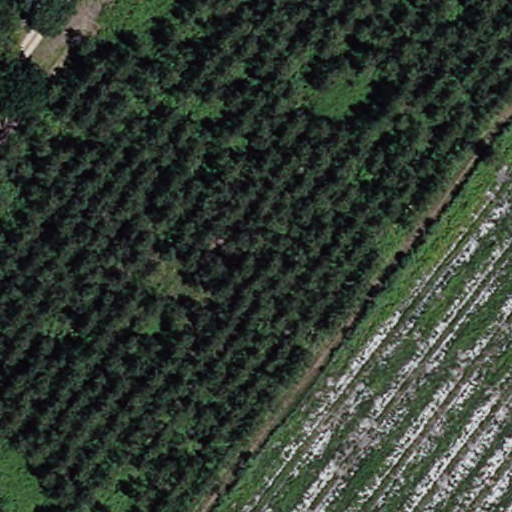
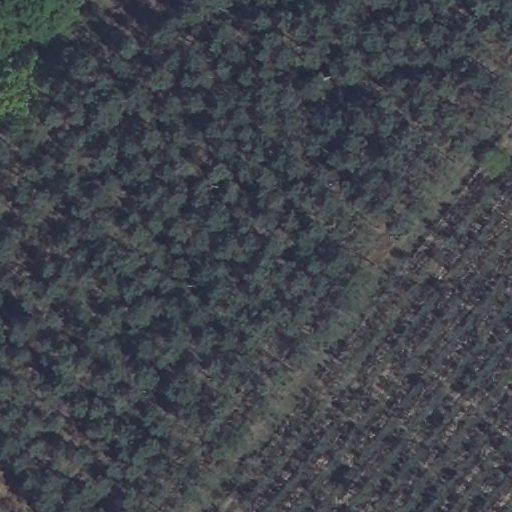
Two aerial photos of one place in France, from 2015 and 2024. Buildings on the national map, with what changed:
unchanged [(0,512),(0,503),(7,507),(4,512),(0,512)]

